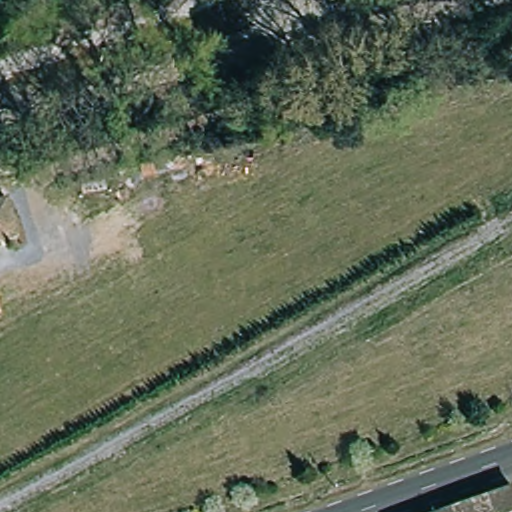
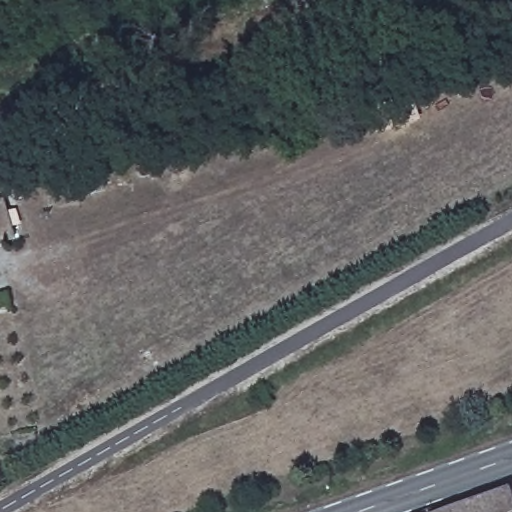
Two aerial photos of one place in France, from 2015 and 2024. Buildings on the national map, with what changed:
unchanged [(9,204),(18,236),(0,242),(0,206),(9,204)]
unchanged [(1,313),(0,313),(0,312),(1,313)]
unchanged [(450,504),(489,491),(512,483),(512,485),(512,512),(454,512),(452,507),(450,504)]
unchanged [(452,507),(454,512),(426,512),(450,504),(452,507)]

